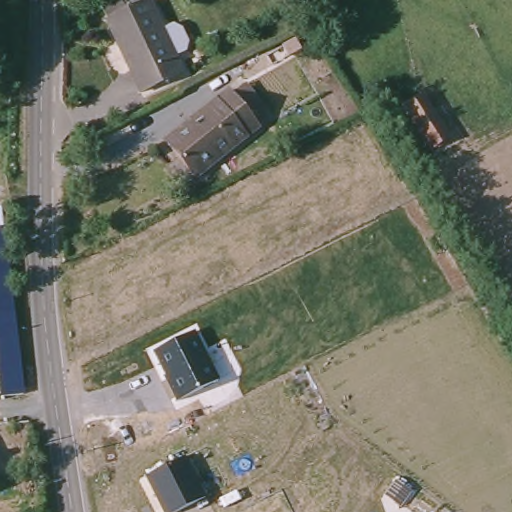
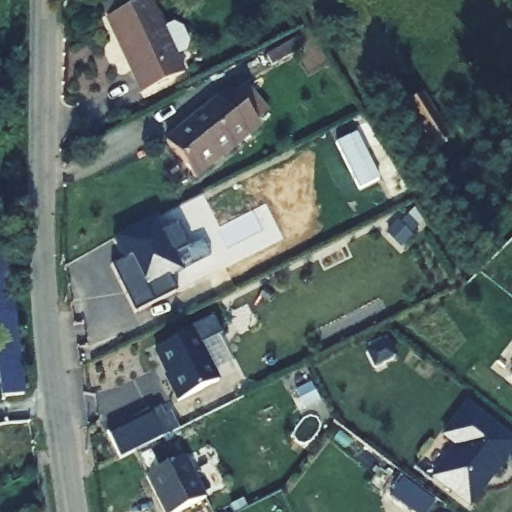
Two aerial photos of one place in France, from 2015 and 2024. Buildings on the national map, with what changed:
unchanged [(159,8),(158,6),(148,11),(142,0),(176,0),(159,8)]
unchanged [(163,43),(173,38),(181,43),(188,56),(186,66),(176,71),(183,87),(141,108),(126,78),(131,76),(121,57),(118,58),(107,34),(101,21),(137,4),(143,17),(148,14),(163,43)]
unchanged [(195,178),(166,142),(229,91),(233,95),(246,84),(269,112),(256,123),(259,127),(195,178)]
unchanged [(429,90),(445,116),(428,127),(413,101),(429,90)]
new [(123,261),(112,240),(152,220),(158,233),(176,224),(189,249),(171,258),(178,272),(169,277),(177,293),(133,315),(109,268),(123,261)]
unchanged [(0,242),(19,396),(0,398),(0,242)]
unchanged [(196,333),(219,381),(178,400),(164,376),(168,375),(156,351),(196,333)]
new [(366,352),(387,342),(394,358),(374,368),(366,352)]
new [(511,379),(512,378),(512,380),(511,379)]
new [(434,478),(458,446),(444,436),(467,406),(512,441),(512,450),(491,477),(490,476),(483,485),(484,486),(469,505),(434,478)]
new [(148,414),(156,410),(161,419),(166,416),(175,432),(161,439),(119,460),(106,434),(148,413),(148,414)]
unchanged [(206,499),(180,512),(164,512),(146,475),(185,457),(206,499)]

